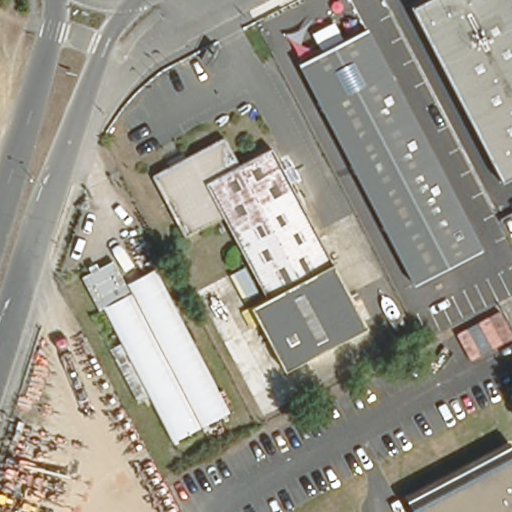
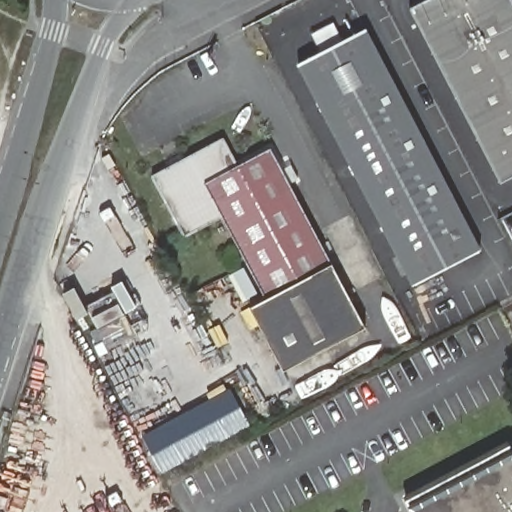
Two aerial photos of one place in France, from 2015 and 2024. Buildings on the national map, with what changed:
unchanged [(512,0),(512,176),(500,182),(408,7),(423,0),(512,0)]
unchanged [(369,34),(475,239),(405,275),(299,70),(369,34)]
unchanged [(241,305),(250,301),(267,292),(224,211),(185,232),(152,170),(170,161),(167,156),(184,147),(187,152),(225,131),(240,160),(271,142),(334,258),(367,320),(285,365),(260,318),(250,323),(241,305)]
demolished [(79,278),(95,270),(100,281),(110,276),(122,298),(96,311),(79,278)]
demolished [(228,425),(170,456),(95,315),(123,299),(128,308),(157,292),(228,425)]
demolished [(496,310),(511,336),(477,352),(464,326),(496,310)]
demolished [(253,327),(280,379),(251,393),(224,343),(253,327)]
new [(163,473),(140,432),(230,387),(250,427),(163,473)]
unchanged [(408,501),(510,447),(512,451),(512,512),(414,512),(408,501)]

